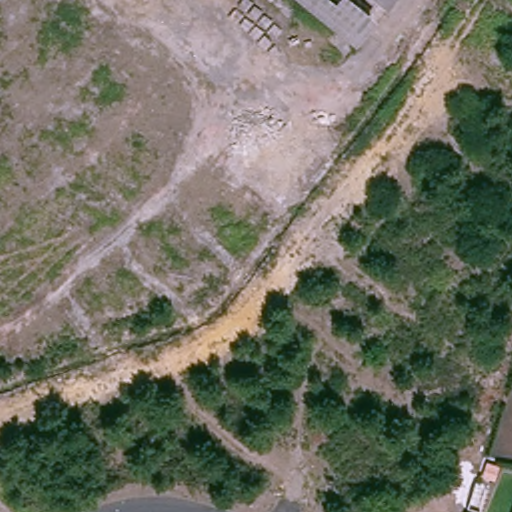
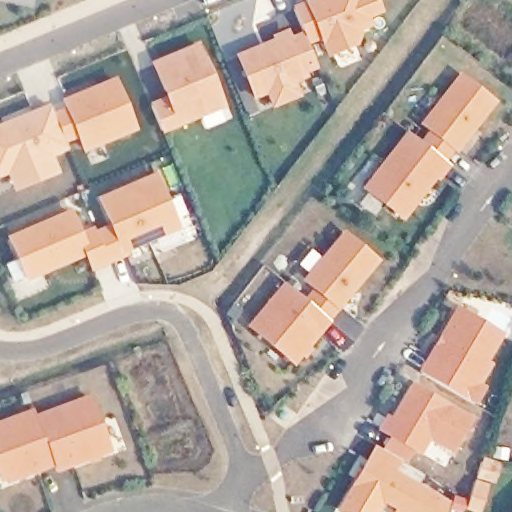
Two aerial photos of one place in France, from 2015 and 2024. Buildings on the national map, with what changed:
new [(383,13),(370,19),(373,27),(361,32),(362,36),(357,46),(327,58),(319,40),(307,46),(318,70),(307,74),(309,78),(295,84),(301,98),(272,109),(267,95),(253,100),(234,55),(273,39),(271,36),(288,29),(290,36),(302,24),(293,6),(304,1),(306,0),(378,0),(383,13)]
new [(149,104),(163,95),(149,63),(199,42),(227,108),(162,134),(149,104)]
new [(498,102),(457,154),(455,152),(447,163),(451,166),(440,182),(436,180),(403,223),(361,190),(406,132),(418,139),(426,130),(418,124),(459,73),(498,102)]
new [(137,130),(82,153),(75,137),(64,144),(51,113),(63,107),(60,100),(115,77),(137,130)]
new [(64,144),(67,150),(53,157),(59,173),(13,192),(5,175),(0,178),(0,124),(48,105),(51,113),(64,144)]
new [(180,229),(130,251),(131,255),(91,273),(84,256),(25,283),(5,238),(70,210),(80,231),(105,219),(96,198),(155,172),(180,229)]
new [(382,261),(331,323),(310,348),(313,350),(305,359),(303,357),(294,367),(246,326),(283,283),(300,296),(310,288),(301,281),(344,231),(382,261)]
new [(457,305),(506,334),(491,361),(494,363),(483,382),(489,386),(477,406),(418,371),(457,305)]
new [(406,462),(383,449),(390,438),(378,431),(409,379),(468,414),(463,422),(470,427),(460,443),(457,441),(450,452),(431,441),(422,456),(412,451),(406,462)]
new [(34,414),(90,394),(112,453),(55,474),(54,468),(6,485),(4,481),(0,482),(0,421),(32,409),(34,414)]
new [(384,504),(379,512),(335,512),(369,455),(450,502),(447,512),(394,512),(394,510),(384,504)]
new [(496,486),(491,485),(481,512),(473,512),(466,509),(483,460),(502,466),(496,486)]

